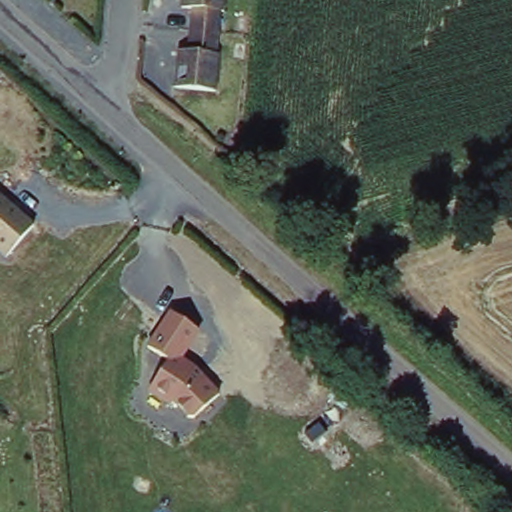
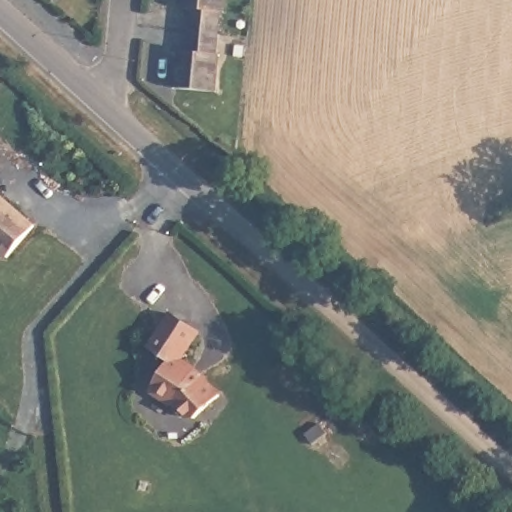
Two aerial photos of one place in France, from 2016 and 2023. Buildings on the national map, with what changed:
unchanged [(215,10),(212,31),(209,49),(215,50),(207,88),(167,84),(171,46),(185,47),(186,29),(190,6),(177,5),(178,0),(223,0),(221,10),(215,10)]
unchanged [(5,256),(0,251),(0,194),(31,224),(5,256)]
unchanged [(200,332),(184,356),(219,388),(196,416),(151,382),(169,357),(150,343),(170,312),(200,332)]

